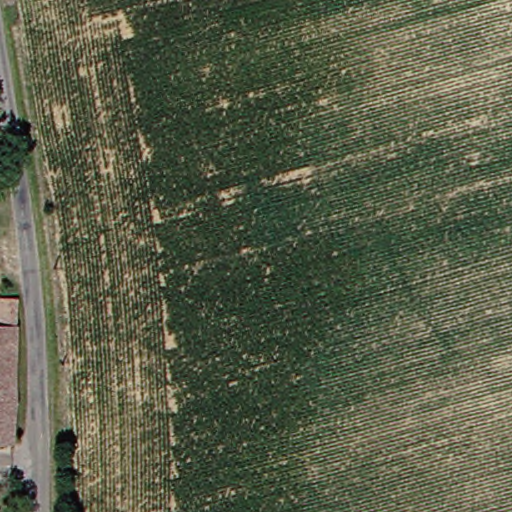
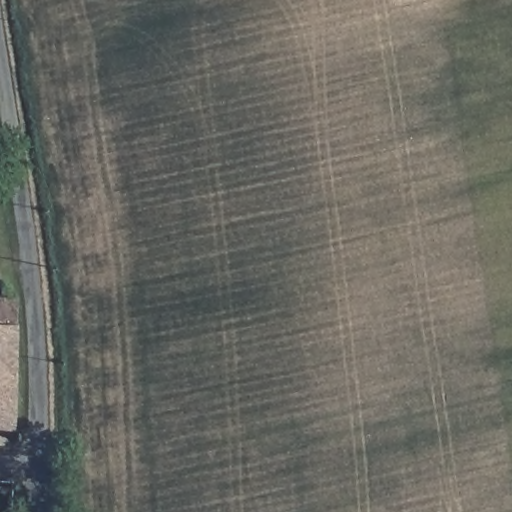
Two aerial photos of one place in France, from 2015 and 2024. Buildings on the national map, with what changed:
unchanged [(0,303),(8,302),(9,325),(0,325),(0,303)]
unchanged [(10,440),(0,440),(0,325),(9,325),(10,440)]

